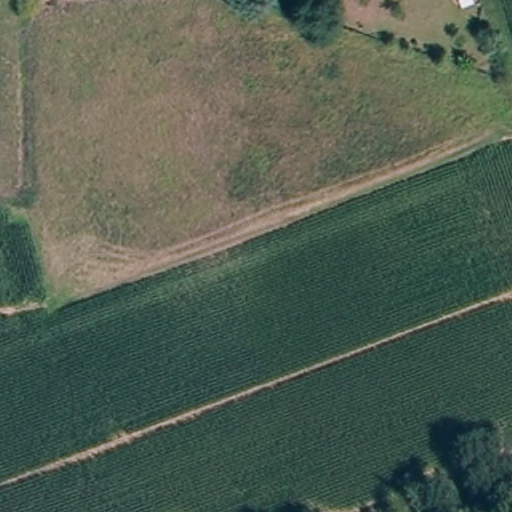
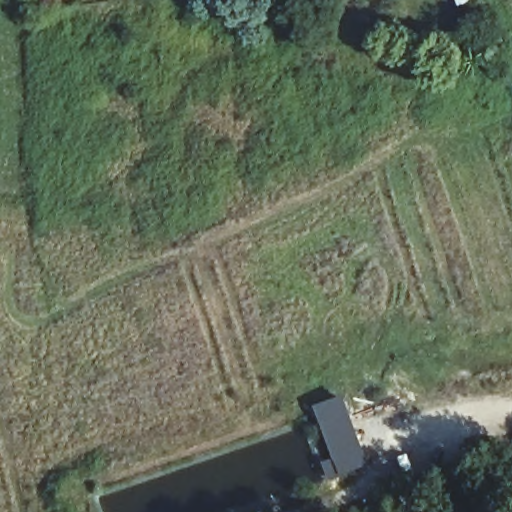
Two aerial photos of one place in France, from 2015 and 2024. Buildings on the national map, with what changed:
new [(325,463),(336,459),(318,408),(347,397),(371,466),(331,480),(325,463)]

